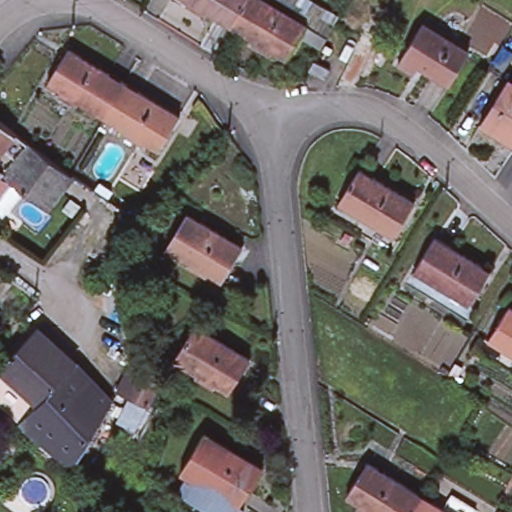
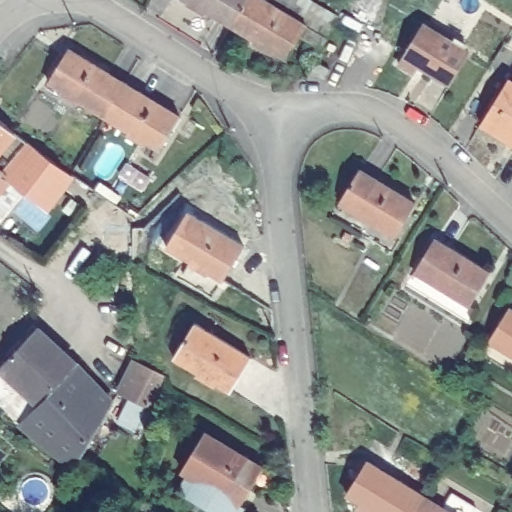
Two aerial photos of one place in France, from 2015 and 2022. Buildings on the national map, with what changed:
unchanged [(234,28),(209,13),(205,17),(188,7),(191,2),(187,0),(250,0),(234,28)]
unchanged [(292,18),(309,27),(289,61),(277,54),(274,58),(255,48),(259,43),(234,28),(250,0),(263,0),(292,18)]
unchanged [(292,18),(263,0),(302,0),(292,18)]
unchanged [(469,51),(450,84),(420,65),(415,73),(399,64),(422,24),(469,51)]
unchanged [(77,103),(75,107),(57,97),(60,92),(47,85),(67,52),(122,85),(102,119),(77,103)]
unchanged [(480,129),(507,84),(512,86),(512,148),(480,129)]
unchanged [(159,151),(145,144),(142,149),(125,139),(129,134),(102,119),(122,85),(179,119),(159,151)]
unchanged [(22,140),(64,170),(67,172),(65,174),(42,206),(4,179),(2,181),(0,183),(0,124),(10,131),(22,140)]
unchanged [(412,205),(392,240),(336,206),(357,171),(412,205)]
unchanged [(91,187),(107,199),(105,203),(95,196),(89,191),(91,187)]
unchanged [(242,248),(222,282),(209,275),(206,279),(189,270),(192,265),(167,250),(187,216),(242,248)]
unchanged [(489,275),(469,309),(412,275),(432,241),(489,275)]
unchanged [(512,313),(512,359),(487,344),(509,310),(512,313)]
unchanged [(250,360),(229,394),(215,385),(212,390),(195,379),(198,375),(174,359),(195,325),(250,360)]
unchanged [(75,366),(38,407),(0,372),(0,369),(36,330),(75,366)]
unchanged [(147,405),(117,391),(127,372),(134,361),(161,375),(147,405)]
unchanged [(20,426),(38,407),(75,366),(108,402),(110,403),(72,467),(20,426)]
unchanged [(182,464),(205,428),(262,464),(239,500),(238,501),(188,468),(182,464)]
unchanged [(359,503),(346,495),(367,461),(422,495),(412,512),(362,512),(357,508),(359,503)]
unchanged [(237,512),(223,512),(178,483),(179,482),(180,482),(184,477),(183,476),(188,468),(238,501),(239,500),(243,502),(237,512)]
unchanged [(442,508),(452,495),(477,510),(475,512),(412,512),(422,495),(442,508)]

